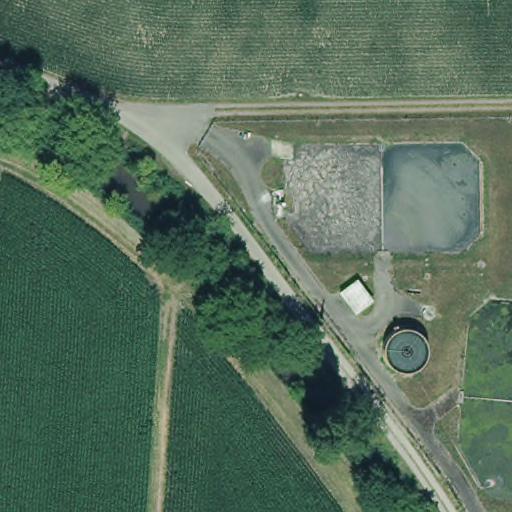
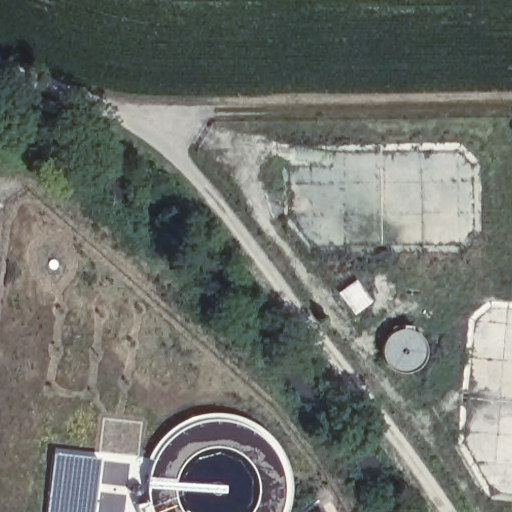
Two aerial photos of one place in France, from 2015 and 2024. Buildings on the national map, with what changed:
unchanged [(360,276),(377,300),(355,315),(338,289),(360,276)]
new [(105,458),(98,512),(45,512),(53,453),(105,458)]

